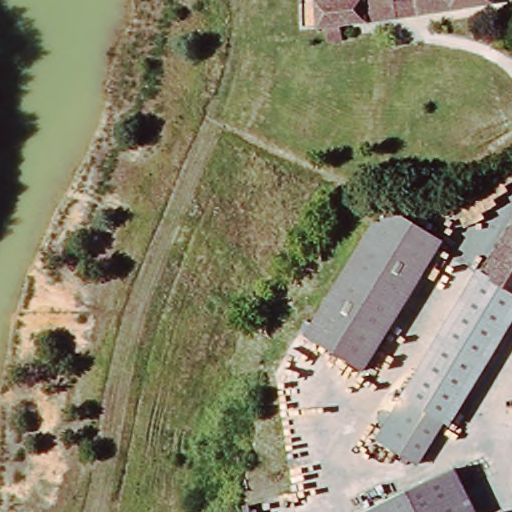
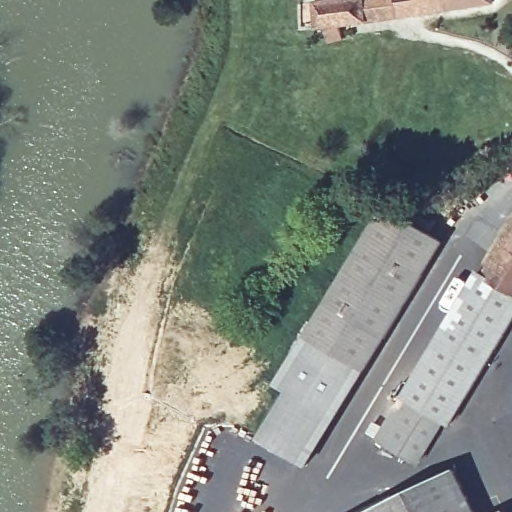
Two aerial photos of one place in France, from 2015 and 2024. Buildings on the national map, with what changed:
unchanged [(330,38),(327,24),(321,2),(328,0),(498,0),(428,12),(407,15),(348,23),(345,37),(330,38)]
unchanged [(365,367),(307,332),(384,206),(442,241),(365,367)]
unchanged [(512,216),(512,316),(451,418),(446,416),(418,461),(377,436),(512,216)]
new [(285,393),(272,385),(307,332),(365,367),(304,467),(258,438),(285,393)]
unchanged [(479,512),(369,512),(368,511),(458,470),(479,512)]
unchanged [(368,511),(369,512),(366,512),(368,511)]

